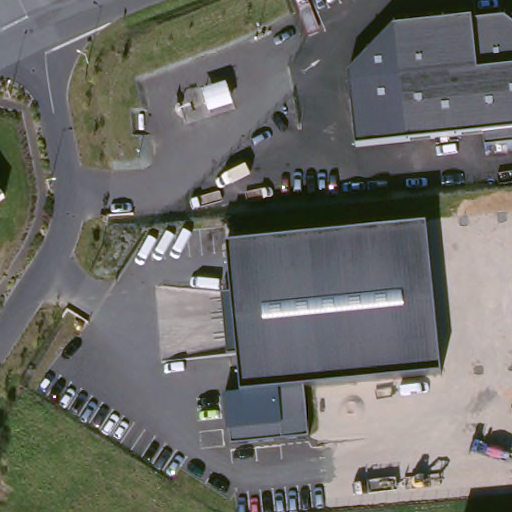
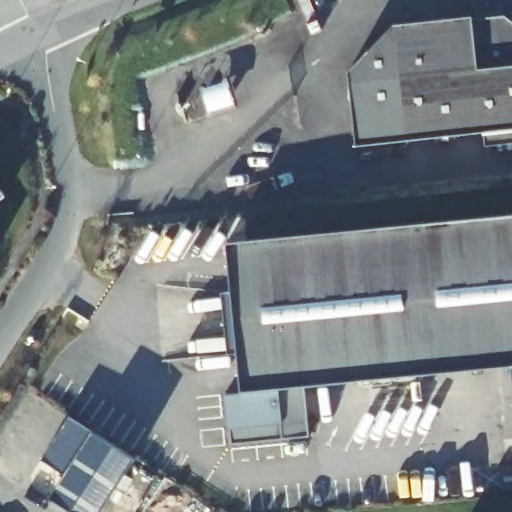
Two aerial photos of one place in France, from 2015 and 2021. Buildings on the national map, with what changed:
unchanged [(474,17),(510,16),(512,17),(512,141),(486,144),(485,134),(407,136),(391,24),(474,17)]
new [(407,136),(436,135),(437,137),(357,147),(349,73),(392,29),(407,136)]
unchanged [(0,198),(0,188),(5,195),(0,198)]
new [(441,375),(427,224),(512,216),(512,367),(441,375)]
unchanged [(441,375),(304,389),(310,436),(232,445),(225,397),(240,395),(225,244),(427,224),(441,375)]
new [(136,460),(102,512),(69,512),(49,499),(65,476),(41,461),(68,418),(91,433),(136,460)]

